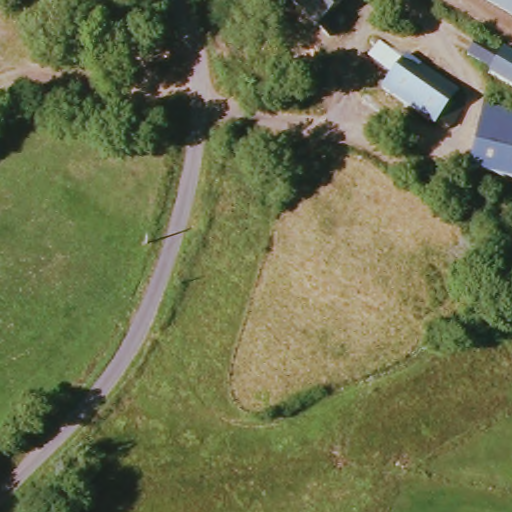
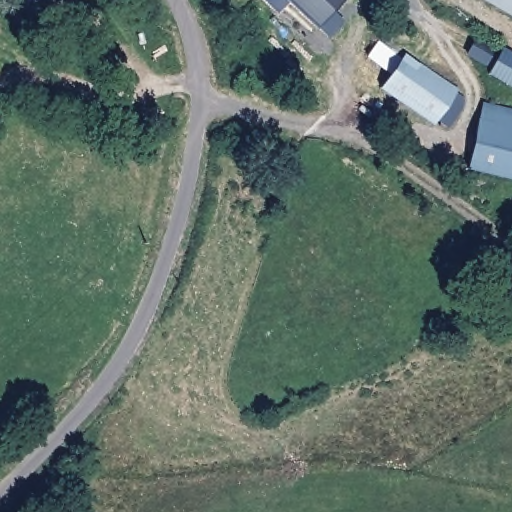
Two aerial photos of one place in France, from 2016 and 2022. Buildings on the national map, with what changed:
unchanged [(280,0),(342,0),(316,31),(280,0)]
unchanged [(512,12),(491,0),(512,0),(512,12)]
unchanged [(392,52),(407,60),(466,101),(444,128),(434,122),(429,128),(417,119),(381,88),(389,77),(366,58),(376,45),(392,52)]
unchanged [(495,62),(503,48),(512,53),(512,89),(487,74),(489,69),(466,54),(472,46),(495,62)]
unchanged [(505,110),(512,111),(512,145),(477,142),(476,163),(463,163),(474,105),(505,110)]
unchanged [(477,142),(512,145),(512,190),(462,180),(463,163),(476,163),(477,142)]

